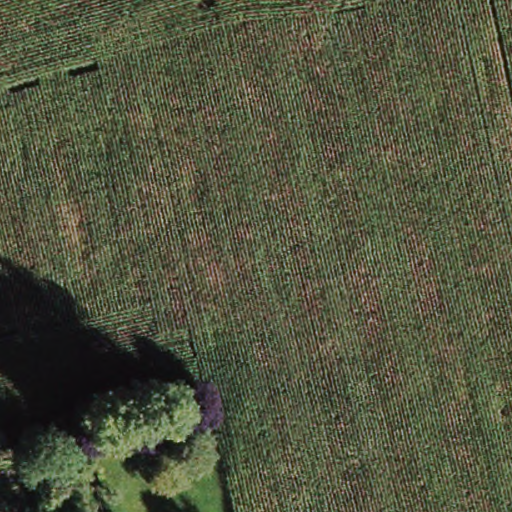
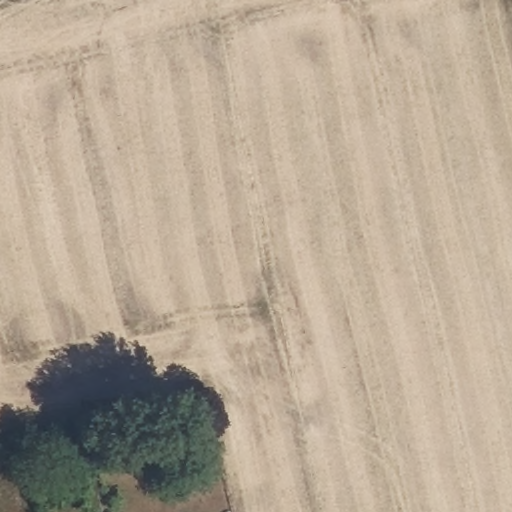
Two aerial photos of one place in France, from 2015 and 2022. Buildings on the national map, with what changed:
[]

